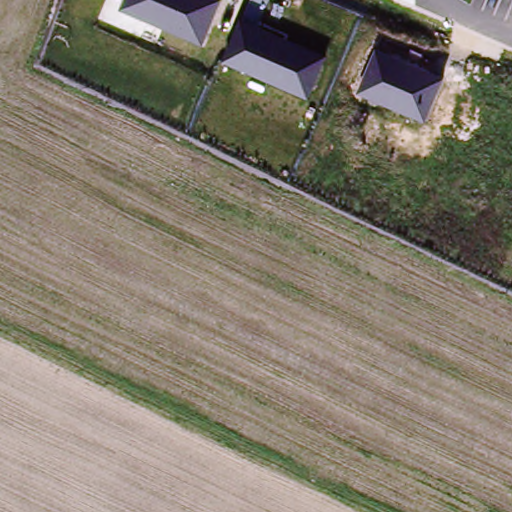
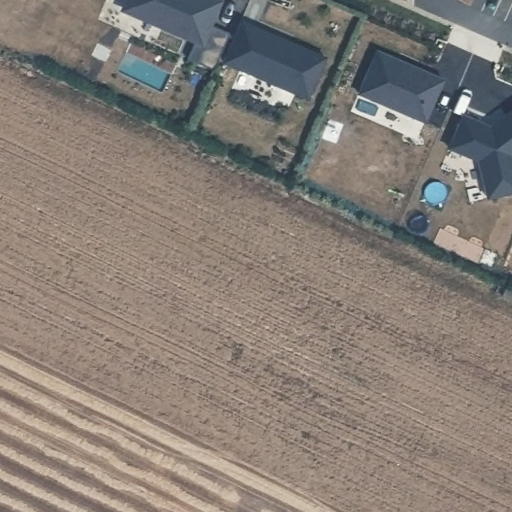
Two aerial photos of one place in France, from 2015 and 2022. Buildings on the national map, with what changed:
unchanged [(123,0),(222,0),(223,1),(202,46),(118,10),(123,0)]
unchanged [(242,21),(327,58),(310,99),(223,63),(242,21)]
unchanged [(375,49),(444,78),(426,121),(358,94),(375,49)]
new [(491,129),(512,113),(512,193),(487,199),(478,163),(447,150),(462,116),(491,129)]

